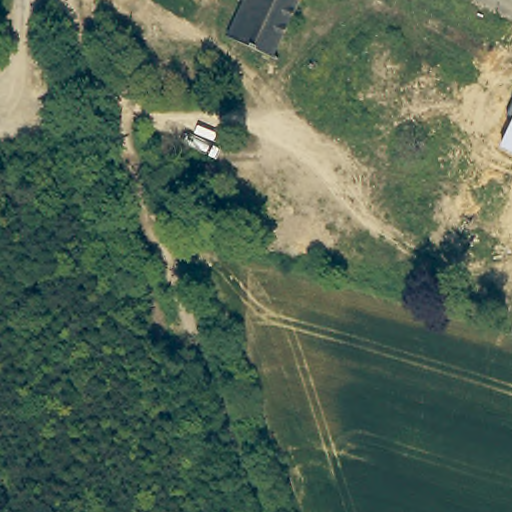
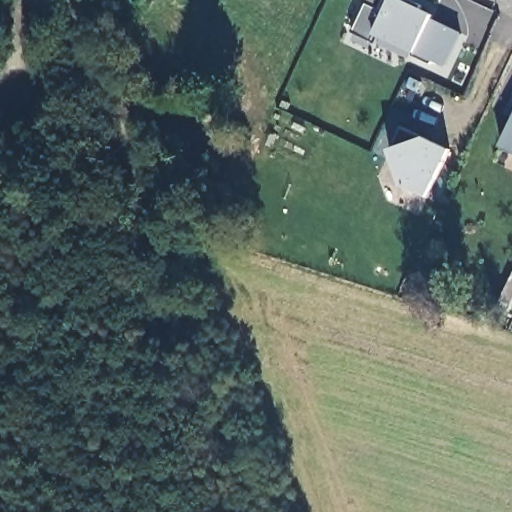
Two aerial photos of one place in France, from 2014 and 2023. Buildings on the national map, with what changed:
unchanged [(227,41),(245,3),(239,0),(302,0),(277,63),(227,41)]
new [(435,13),(431,18),(462,34),(447,67),(417,52),(376,34),(372,42),(352,33),(366,3),(359,0),(408,0),(435,13)]
unchanged [(512,105),(512,117),(507,115),(512,105)]
unchanged [(512,122),(512,153),(501,148),(512,122)]
new [(428,198),(403,187),(390,150),(400,126),(425,136),(450,150),(428,198)]

